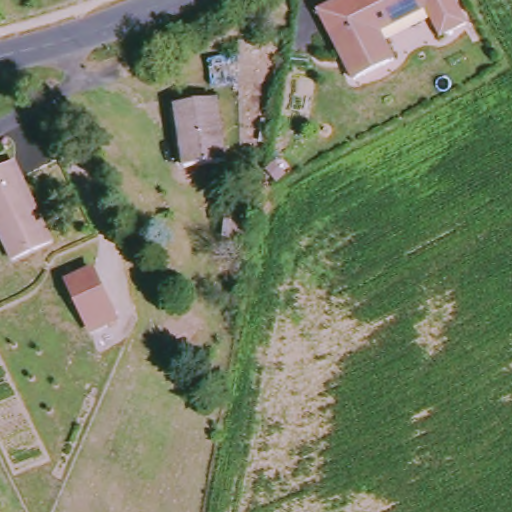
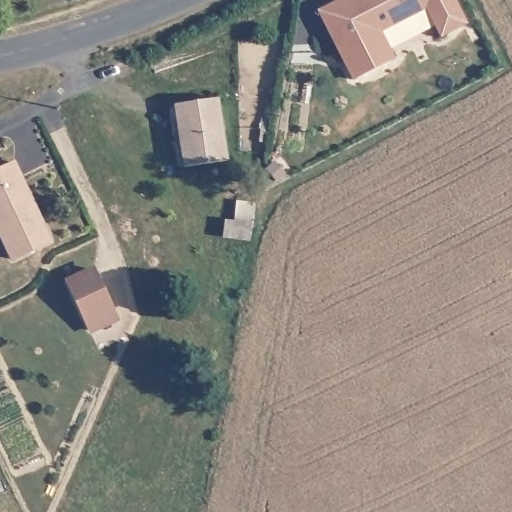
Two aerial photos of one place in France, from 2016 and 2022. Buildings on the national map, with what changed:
unchanged [(318,10),(339,0),(454,0),(467,24),(441,36),(428,8),(394,24),(380,30),(394,59),(353,80),(318,10)]
unchanged [(222,99),(224,163),(208,164),(183,164),(179,102),(184,101),(222,99)]
unchanged [(56,239),(17,260),(0,224),(0,172),(20,163),(56,239)]
unchanged [(232,276),(208,270),(212,256),(235,262),(232,276)]
unchanged [(94,329),(69,281),(75,278),(92,268),(118,316),(97,327),(94,329)]

